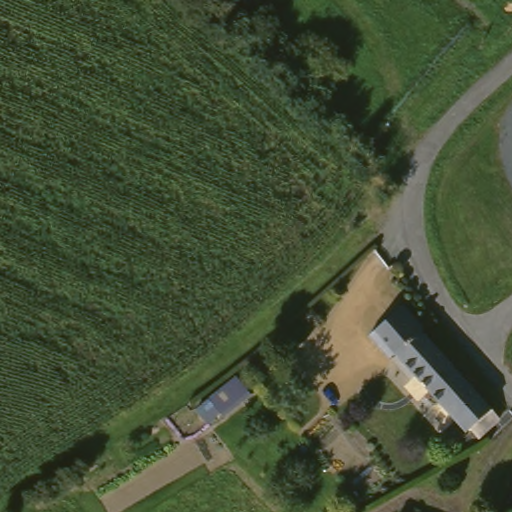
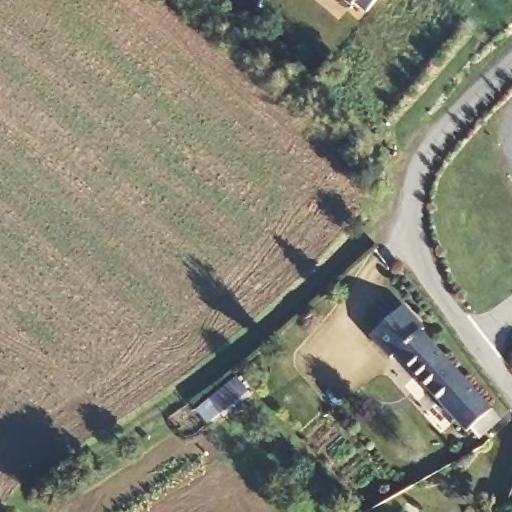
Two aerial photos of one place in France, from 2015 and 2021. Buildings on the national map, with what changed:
new [(354,1),(352,5),(346,0),(377,0),(368,11),(354,1)]
unchanged [(424,324),(420,327),(499,417),(479,434),(469,425),(466,429),(395,349),(389,354),(369,331),(403,300),(424,324)]
unchanged [(241,373),(255,389),(225,413),(213,395),(241,373)]

